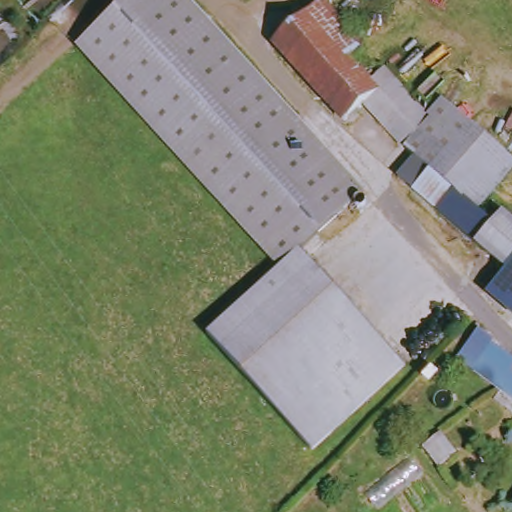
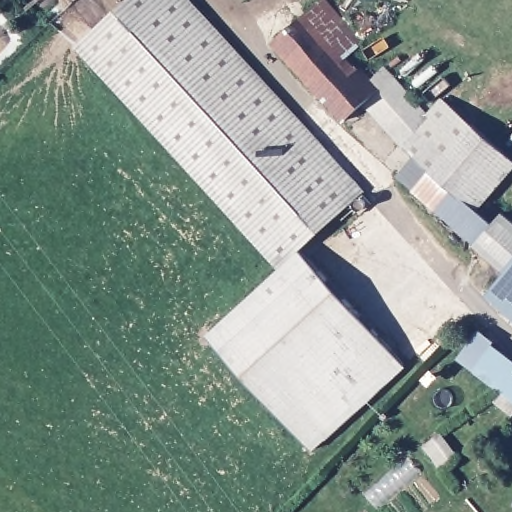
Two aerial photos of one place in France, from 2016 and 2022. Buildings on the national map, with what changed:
unchanged [(286,272),(80,44),(130,0),(193,0),(380,206),(368,217),(358,206),(305,254),(410,369),(316,456),(212,340),(286,272)]
unchanged [(371,108),(351,123),(279,43),(334,1),(372,47),(353,63),(373,85),(388,72),(438,121),(412,149),(371,108)]
unchanged [(454,105),(512,160),(512,182),(482,215),(421,159),(412,149),(438,121),(454,105)]
unchanged [(511,279),(402,180),(421,159),(482,215),(500,232),(509,223),(512,226),(512,318),(491,299),(511,279)]
unchanged [(504,343),(501,346),(512,354),(512,398),(465,362),(490,330),(504,343)]
unchanged [(441,428),(457,450),(438,465),(422,443),(441,428)]

